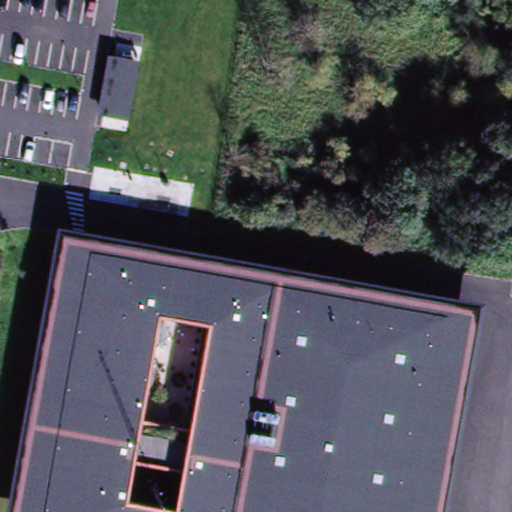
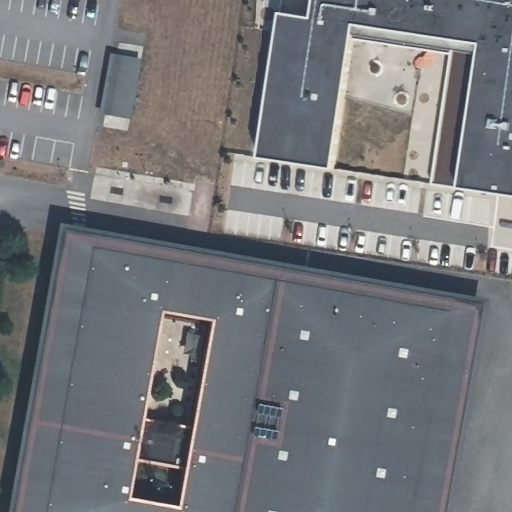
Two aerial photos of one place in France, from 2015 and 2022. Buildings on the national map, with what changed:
new [(431,185),(456,40),(353,24),(331,170),(258,158),(282,0),(512,0),(512,196),(458,188),(431,185)]
unchanged [(97,113),(106,53),(138,60),(127,120),(97,113)]
unchanged [(482,299),(444,512),(6,512),(58,225),(482,299)]

